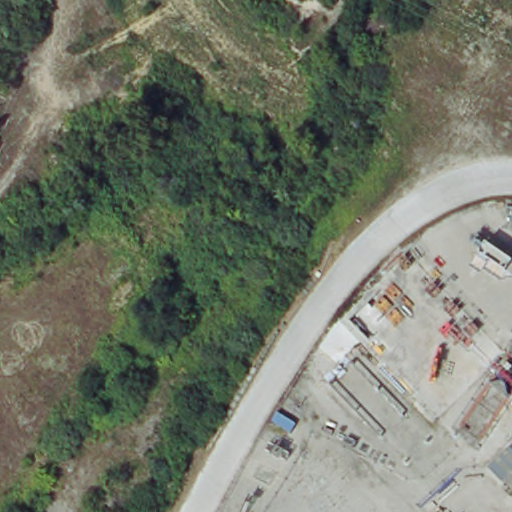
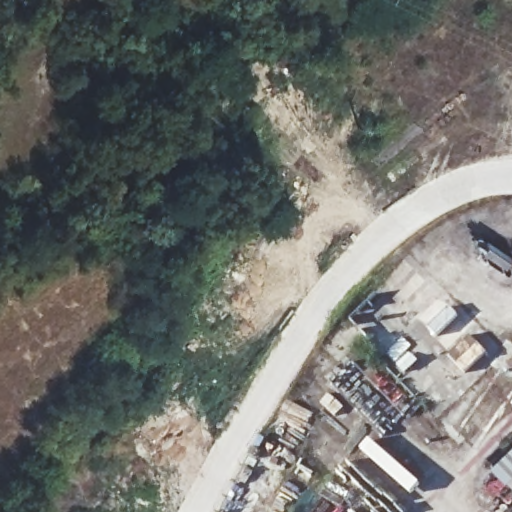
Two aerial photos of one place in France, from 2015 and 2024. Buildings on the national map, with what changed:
unchanged [(490,468),(512,447),(512,489),(490,468)]

